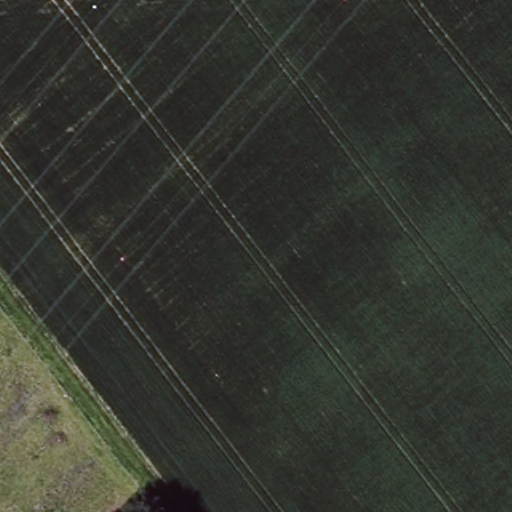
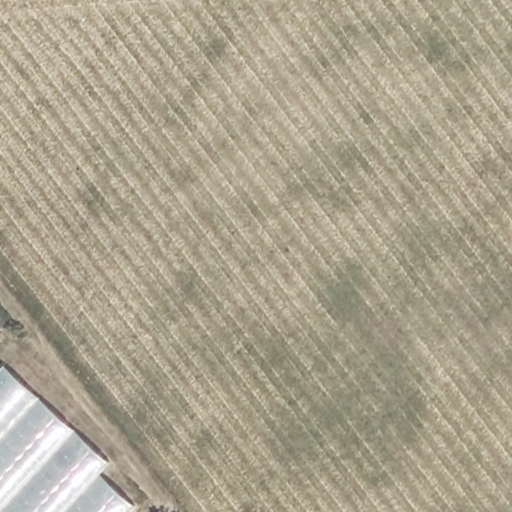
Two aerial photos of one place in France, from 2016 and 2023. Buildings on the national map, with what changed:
new [(110,455),(96,475),(137,512),(136,512),(0,512),(0,374),(5,369),(110,455)]

